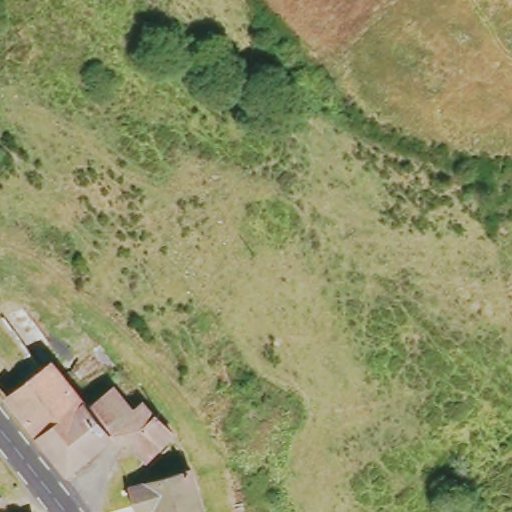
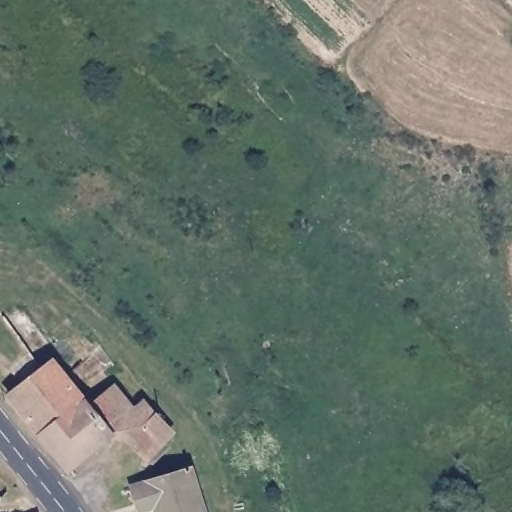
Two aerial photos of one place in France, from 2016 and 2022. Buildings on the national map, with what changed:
unchanged [(0,393),(33,371),(0,328),(0,318),(15,308),(46,347),(43,364),(76,407),(103,389),(121,414),(131,404),(161,434),(133,460),(120,444),(98,438),(58,470),(0,394),(0,393)]
unchanged [(135,506),(130,487),(186,468),(200,512),(136,512),(135,506)]

